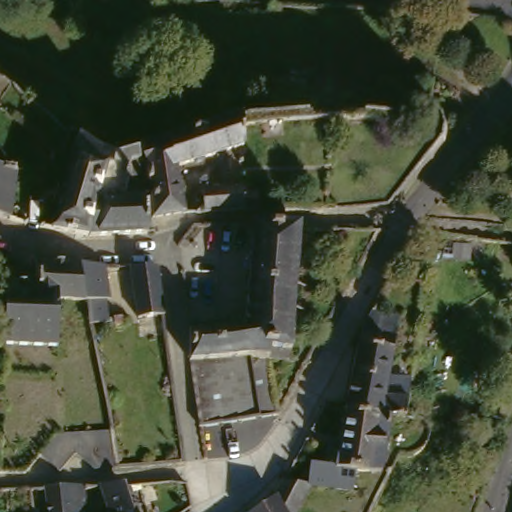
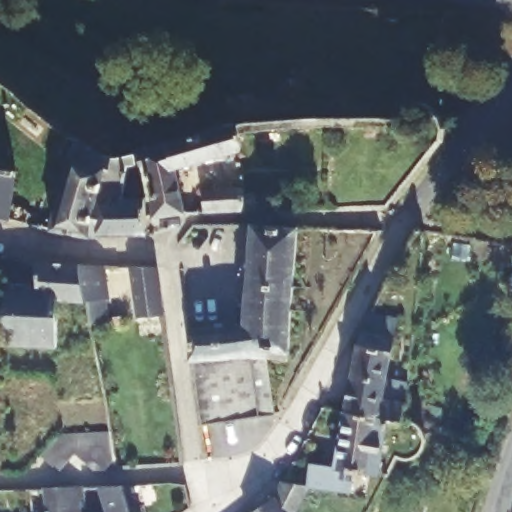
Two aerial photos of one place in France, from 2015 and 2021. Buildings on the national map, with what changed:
unchanged [(11,102),(10,104),(8,106),(5,106),(2,108),(0,106),(0,92),(2,89),(12,96),(12,100),(11,102)]
unchanged [(387,114),(403,103),(402,114),(387,114)]
unchanged [(237,133),(256,131),(257,144),(252,145),(238,146),(238,152),(233,153),(171,166),(171,162),(167,138),(195,131),(236,123),(237,133)]
unchanged [(74,138),(109,148),(89,234),(50,227),(74,138)]
unchanged [(177,215),(148,219),(146,188),(142,166),(135,166),(133,150),(167,138),(171,162),(171,166),(173,184),(177,215)]
unchanged [(135,166),(126,166),(120,198),(140,200),(143,220),(145,232),(89,234),(109,148),(133,150),(135,166)]
unchanged [(14,171),(9,219),(0,217),(0,169),(14,171)]
unchanged [(220,190),(242,188),(243,193),(255,192),(258,212),(223,214),(203,215),(201,191),(220,190)]
unchanged [(244,324),(247,226),(295,226),(289,335),(262,334),(262,356),(245,357),(186,358),(184,325),(244,324)]
unchanged [(81,305),(50,304),(49,350),(37,349),(36,328),(28,328),(30,289),(31,289),(32,266),(74,267),(81,305)]
unchanged [(74,267),(103,268),(104,301),(100,301),(103,323),(86,325),(81,305),(74,267)]
unchanged [(137,320),(131,269),(156,270),(164,318),(137,320)]
unchanged [(30,289),(28,328),(36,328),(37,349),(0,347),(0,308),(0,288),(30,289)]
unchanged [(503,344),(502,342),(509,328),(507,327),(512,319),(512,377),(498,369),(508,346),(503,344)]
unchanged [(343,410),(358,335),(361,329),(393,332),(387,375),(409,377),(404,412),(403,415),(403,420),(389,418),(390,415),(343,410)]
unchanged [(195,426),(189,387),(186,358),(245,357),(256,415),(195,426)]
unchanged [(389,418),(382,474),(369,472),(366,496),(313,488),(296,512),(283,512),(274,496),(283,480),(308,483),(312,462),(336,464),(343,410),(390,415),(389,418)]
unchanged [(108,468),(85,469),(63,453),(50,471),(28,453),(44,428),(101,427),(108,468)]
unchanged [(133,495),(121,497),(127,512),(43,512),(40,492),(56,492),(133,488),(133,495)]
unchanged [(283,512),(251,512),(274,496),(283,512)]

